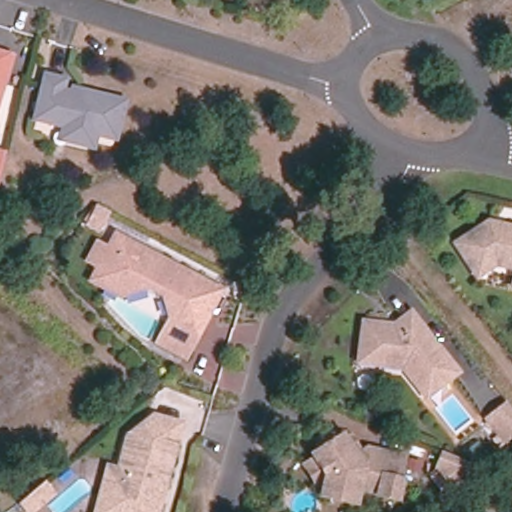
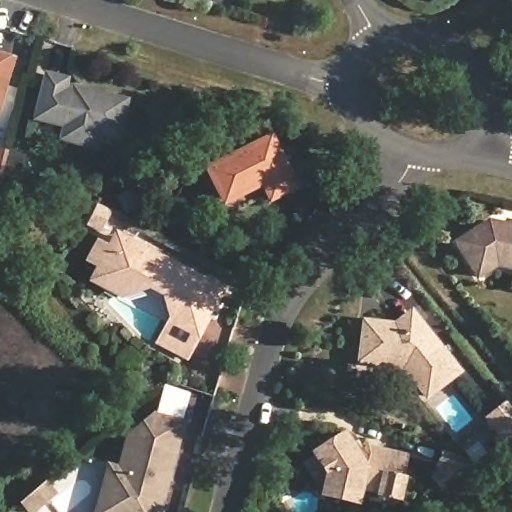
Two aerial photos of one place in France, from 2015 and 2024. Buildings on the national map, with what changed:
unchanged [(0,98),(0,41),(16,46),(0,98)]
unchanged [(67,78),(64,93),(75,95),(77,86),(127,99),(118,134),(99,130),(98,136),(95,138),(89,142),(72,138),(67,129),(68,123),(39,115),(46,85),(49,73),(67,78)]
new [(261,139),(288,182),(262,195),(260,193),(253,179),(216,199),(201,169),(261,139)]
unchanged [(0,186),(0,149),(9,151),(1,187),(0,186)]
new [(201,169),(216,199),(253,179),(260,193),(216,217),(194,174),(201,169)]
unchanged [(107,220),(96,214),(105,197),(117,203),(107,220)]
unchanged [(496,263),(476,276),(454,243),(486,220),(504,224),(512,226),(512,266),(496,263)]
unchanged [(224,292),(190,357),(165,344),(177,320),(170,295),(153,287),(125,295),(109,288),(98,282),(104,270),(93,264),(102,247),(113,253),(121,238),(224,292)]
unchanged [(511,286),(512,281),(512,286),(511,286)]
unchanged [(425,402),(401,373),(375,373),(366,372),(357,372),(357,363),(357,332),(377,332),(391,332),(408,319),(419,332),(454,374),(456,376),(444,386),(425,402)]
unchanged [(505,439),(498,430),(487,417),(506,401),(512,407),(512,435),(505,439)]
unchanged [(103,495),(112,463),(123,466),(132,433),(157,414),(184,421),(159,512),(99,512),(103,495)]
unchanged [(327,495),(328,492),(323,491),(321,489),(309,470),(319,463),(317,459),(320,457),(321,452),(329,447),(334,448),(346,439),(350,445),(355,442),(364,455),(365,457),(370,453),(408,461),(407,466),(404,483),(406,484),(402,504),(382,499),(383,497),(363,493),(361,503),(360,508),(326,501),(327,495)]
unchanged [(442,489),(434,479),(431,476),(443,467),(436,464),(443,449),(462,458),(475,463),(442,489)]
unchanged [(52,494),(31,512),(27,512),(19,503),(42,483),(52,494)]

